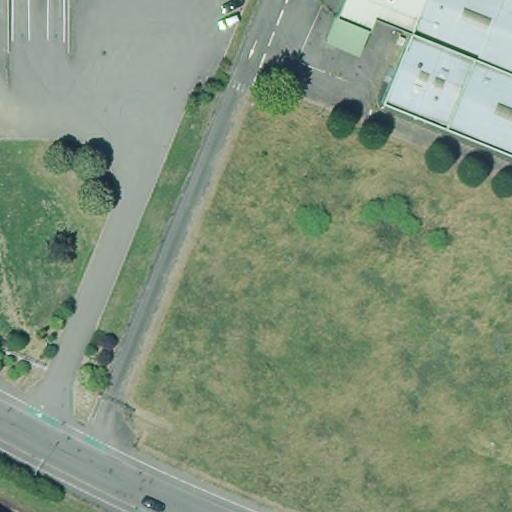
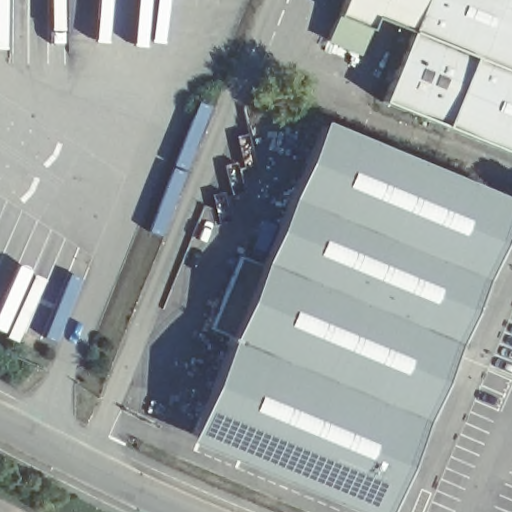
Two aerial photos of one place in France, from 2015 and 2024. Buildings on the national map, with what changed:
unchanged [(331,18),(339,0),(419,0),(405,34),(371,19),(366,32),(355,55),(321,42),(331,18)]
unchanged [(405,34),(419,0),(512,0),(512,81),(404,37),(405,34)]
unchanged [(376,105),(404,37),(512,81),(512,161),(376,105)]
new [(404,512),(298,512),(172,460),(183,424),(213,433),(334,131),(512,219),(512,269),(404,512)]

